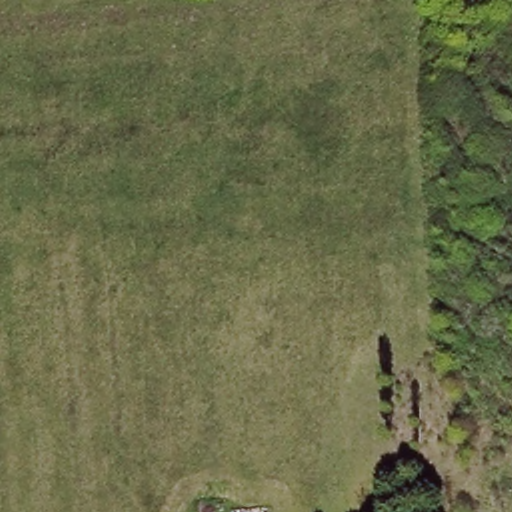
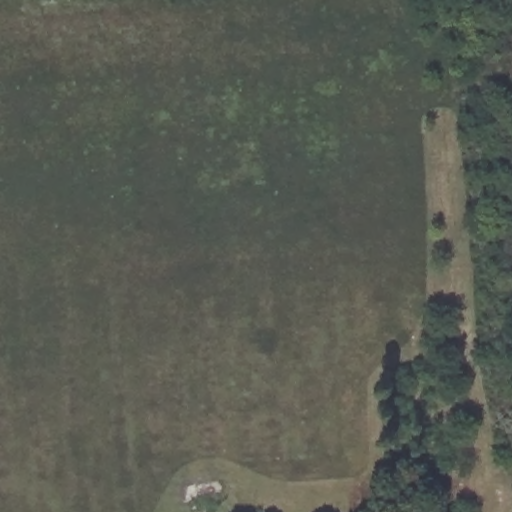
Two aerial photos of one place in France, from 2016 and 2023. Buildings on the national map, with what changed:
[]

